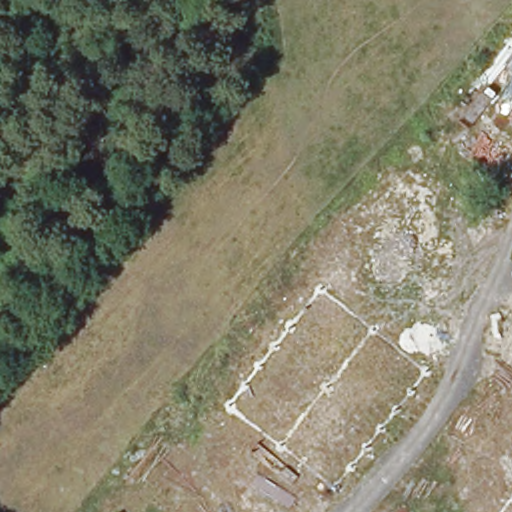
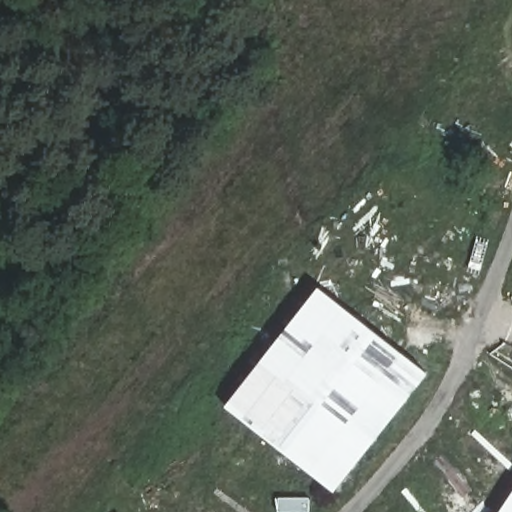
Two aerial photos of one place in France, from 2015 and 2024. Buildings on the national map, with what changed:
new [(431,376),(337,497),(227,411),(322,294),(431,376)]
new [(502,512),(512,497),(512,512),(502,512)]

